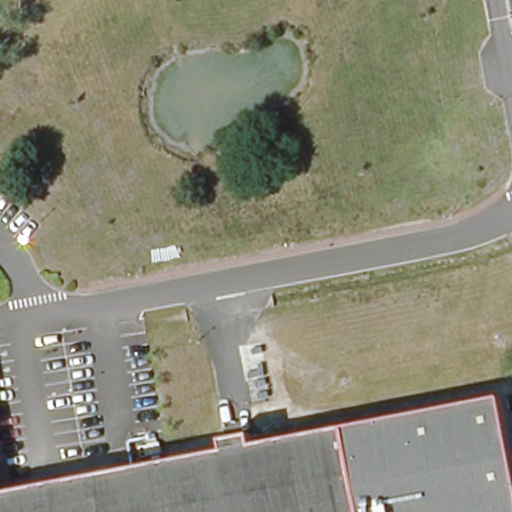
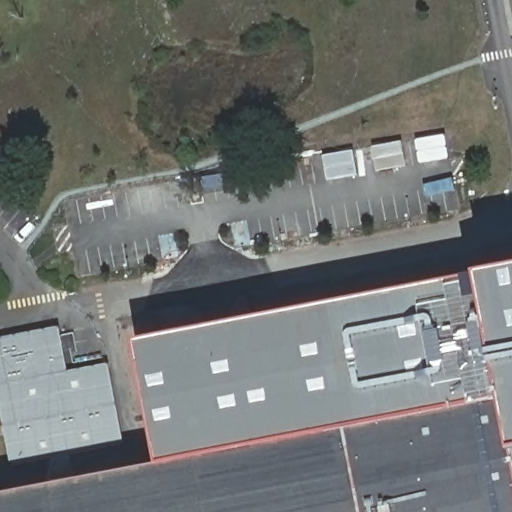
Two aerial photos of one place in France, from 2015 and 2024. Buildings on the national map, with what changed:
new [(468,276),(482,274),(512,267),(512,453),(502,402),(345,431),(161,467),(136,342),(468,276)]
new [(126,444),(12,466),(0,405),(0,337),(61,326),(70,371),(110,364),(126,444)]
unchanged [(512,452),(512,512),(360,512),(345,431),(502,402),(512,452)]
unchanged [(345,431),(360,512),(0,512),(0,497),(345,431)]

